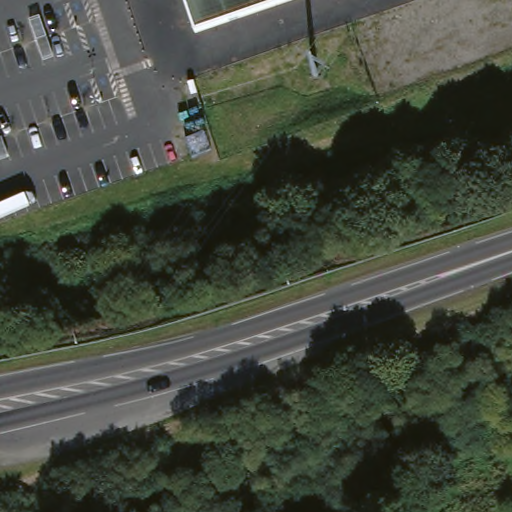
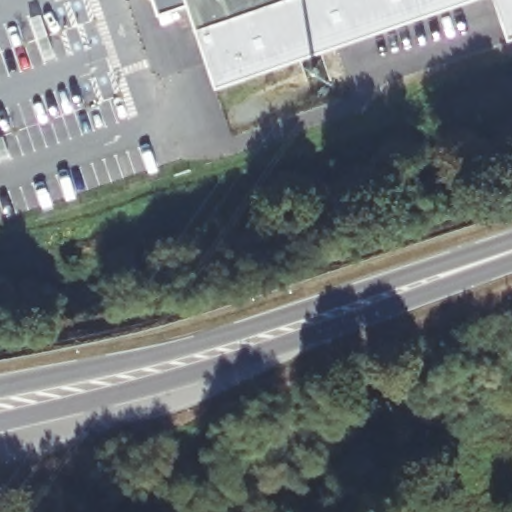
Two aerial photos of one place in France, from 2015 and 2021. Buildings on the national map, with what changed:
new [(209,26),(288,0),(468,0),(215,87),(185,0),(201,0),(209,26)]
unchanged [(209,26),(201,0),(288,0),(209,26)]
new [(509,39),(495,0),(512,0),(512,38),(509,39)]

